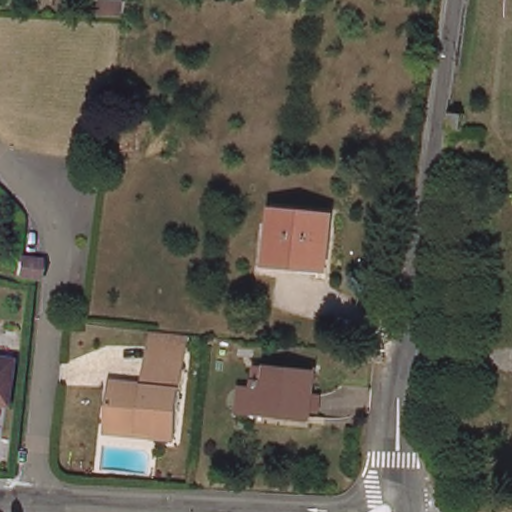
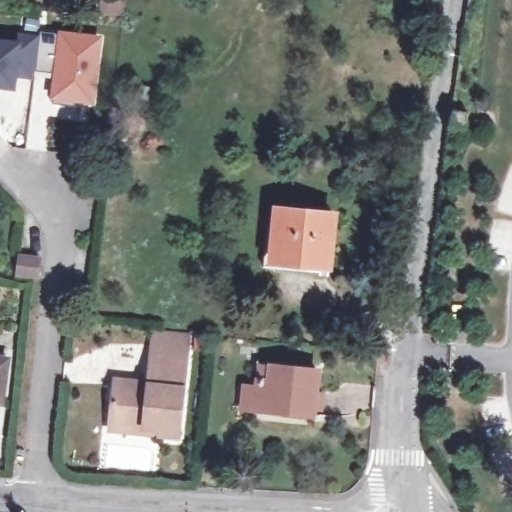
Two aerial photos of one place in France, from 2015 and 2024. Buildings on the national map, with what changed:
unchanged [(101,14),(103,0),(126,0),(125,15),(101,14)]
new [(36,75),(35,77),(16,74),(15,87),(0,85),(0,40),(21,43),(22,34),(41,36),(42,30),(100,38),(92,101),(77,99),(76,106),(54,103),(58,74),(57,79),(36,75)]
unchanged [(452,109),(466,111),(464,127),(450,126),(452,109)]
unchanged [(337,219),(331,271),(308,269),(307,277),(268,272),(271,240),(272,231),(280,232),(282,213),(337,219)]
unchanged [(39,258),(37,277),(18,275),(20,256),(39,258)]
unchanged [(117,428),(121,390),(153,393),(156,363),(158,336),(194,340),(191,367),(185,443),(166,441),(116,436),(117,428)]
unchanged [(5,383),(0,383),(0,363),(6,363),(5,383)]
unchanged [(270,410),(250,408),(252,388),(267,389),(268,382),(270,366),(282,367),(327,372),(325,411),(324,415),(308,414),(270,410)]

